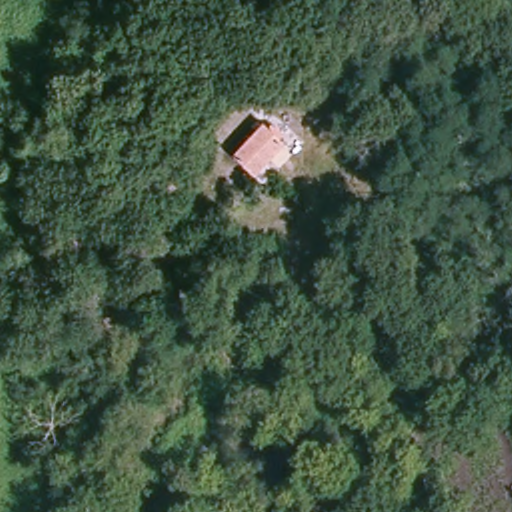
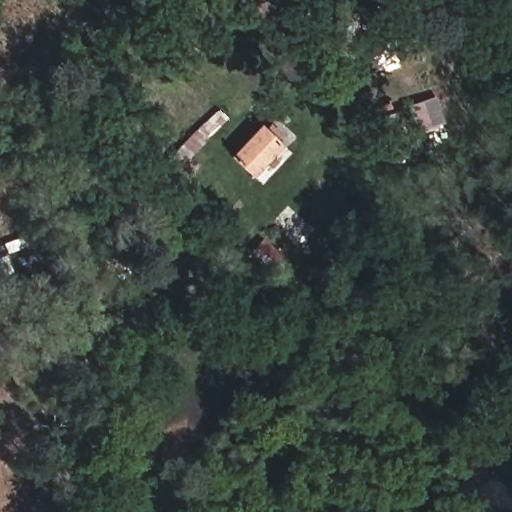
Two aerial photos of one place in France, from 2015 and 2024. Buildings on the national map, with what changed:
unchanged [(290,147),(264,182),(234,160),(262,124),(290,147)]

